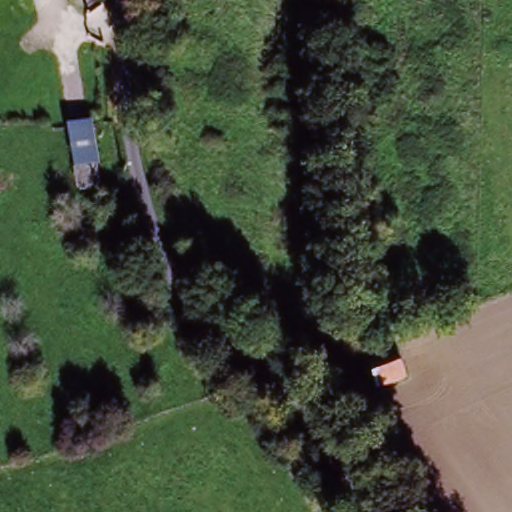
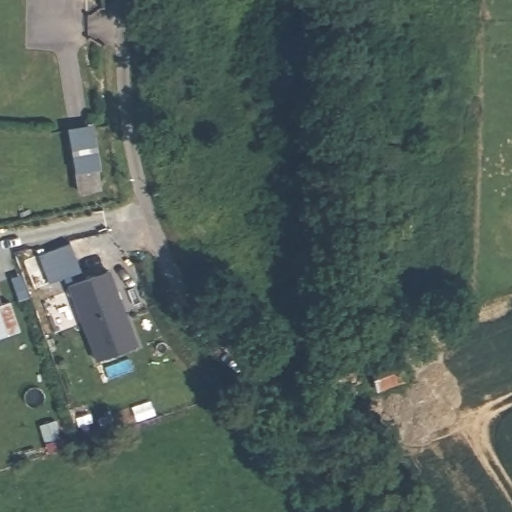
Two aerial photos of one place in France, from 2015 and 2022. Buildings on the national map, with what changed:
unchanged [(88,194),(72,132),(89,128),(105,191),(88,194)]
new [(139,346),(95,362),(66,288),(110,270),(139,346)]
unchanged [(408,382),(377,395),(367,370),(399,356),(408,382)]

